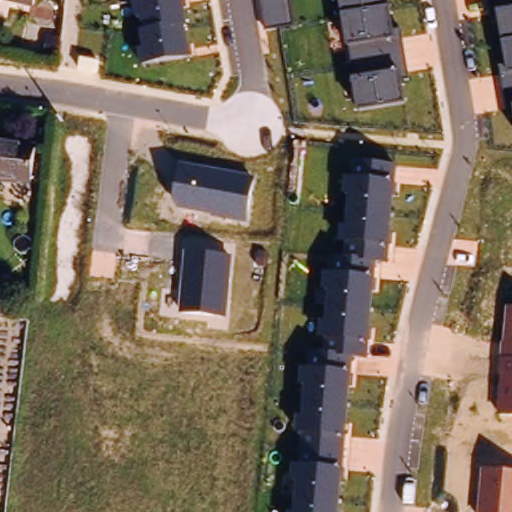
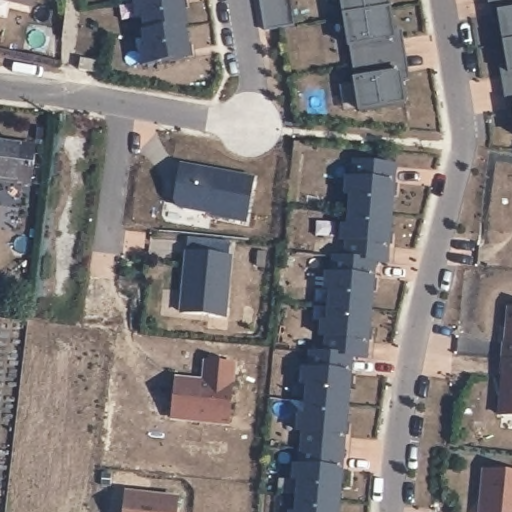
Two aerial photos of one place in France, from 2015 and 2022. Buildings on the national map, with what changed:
unchanged [(0,3),(0,0),(37,0),(35,10),(0,3)]
unchanged [(139,47),(143,46),(135,0),(184,0),(188,25),(185,26),(192,56),(141,66),(139,47)]
unchanged [(289,0),(293,25),(264,30),(259,0),(289,0)]
unchanged [(401,28),(409,79),(402,80),(405,102),(358,111),(339,0),(389,0),(394,30),(401,28)]
unchanged [(511,112),(506,113),(499,66),(504,65),(495,15),(491,16),(489,0),(512,0),(512,117),(511,112)]
unchanged [(28,189),(0,185),(0,142),(34,148),(28,189)]
unchanged [(398,190),(394,191),(391,263),(376,262),(368,358),(351,358),(339,512),(288,512),(293,511),(295,482),(291,482),(293,462),(299,463),(301,432),(293,432),(293,416),(301,416),(304,384),(298,383),(299,367),(309,367),(311,350),(324,351),(325,338),(321,337),(322,321),(324,321),(328,295),(323,294),(324,271),(328,271),(331,255),(336,255),(339,225),(346,225),(348,195),(344,194),(344,175),(351,175),(351,161),(397,163),(398,190)]
unchanged [(178,162),(254,175),(247,224),(178,209),(173,200),(178,162)]
unchanged [(186,250),(233,255),(226,317),(178,313),(186,250)]
unchanged [(497,415),(507,307),(512,307),(512,417),(497,415)]
new [(202,380),(203,360),(237,363),(231,426),(173,422),(174,377),(202,380)]
unchanged [(481,467),(512,470),(512,512),(477,512),(481,467)]
new [(181,496),(179,512),(124,512),(126,490),(181,496)]

